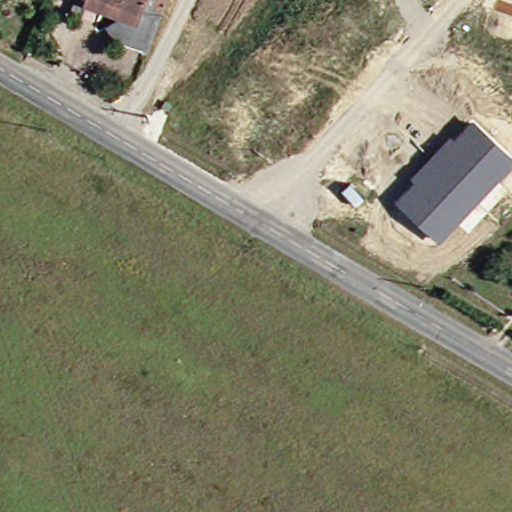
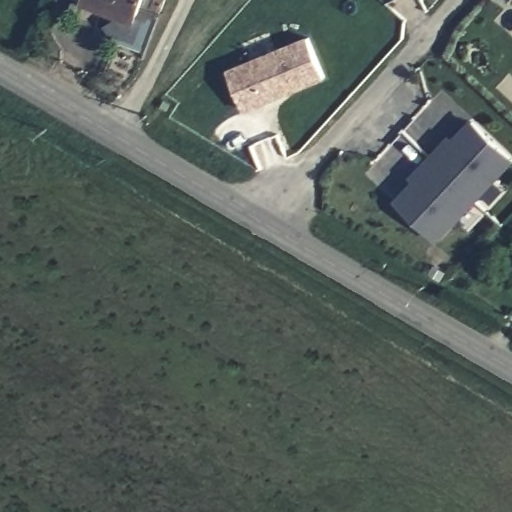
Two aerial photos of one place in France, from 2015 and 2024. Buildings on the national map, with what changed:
unchanged [(82,0),(139,0),(135,9),(130,22),(82,0)]
new [(245,112),(227,70),(309,37),(326,81),(245,112)]
unchanged [(116,98),(124,81),(129,84),(122,101),(116,98)]
unchanged [(512,156),(512,163),(435,244),(393,200),(413,179),(410,175),(448,135),(452,137),(472,118),(512,156)]

